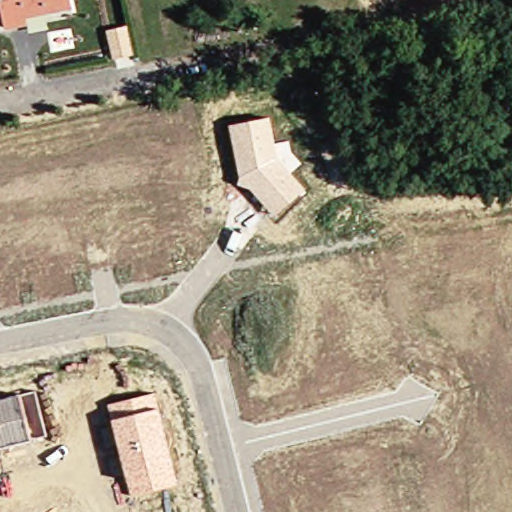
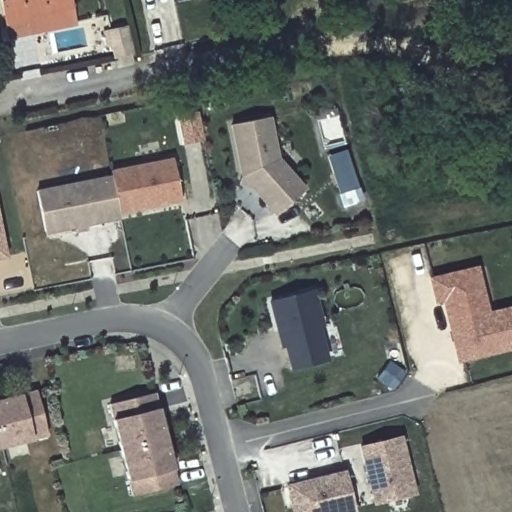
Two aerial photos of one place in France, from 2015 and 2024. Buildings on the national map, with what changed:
unchanged [(76,0),(76,2),(34,14),(35,21),(14,25),(8,0),(76,0)]
new [(174,0),(180,0),(175,1),(174,0)]
unchanged [(270,116),(279,159),(307,187),(277,218),(245,186),(236,186),(240,176),(230,125),(270,116)]
new [(341,194),(335,176),(329,157),(347,151),(354,170),(360,189),(341,194)]
new [(115,170),(177,158),(185,200),(123,212),(116,175),(115,170)]
new [(125,217),(50,232),(41,190),(116,175),(125,217)]
new [(9,257),(0,259),(0,215),(9,257)]
new [(512,352),(458,365),(436,277),(478,267),(490,312),(512,307),(512,352)]
new [(325,326),(321,327),(329,361),(288,370),(272,302),(315,290),(325,326)]
unchanged [(48,434),(0,446),(0,397),(36,389),(48,434)]
unchanged [(154,391),(177,484),(132,496),(108,404),(154,391)]
new [(399,438),(413,495),(380,503),(366,446),(399,438)]
new [(345,473),(355,512),(295,512),(289,487),(345,473)]

